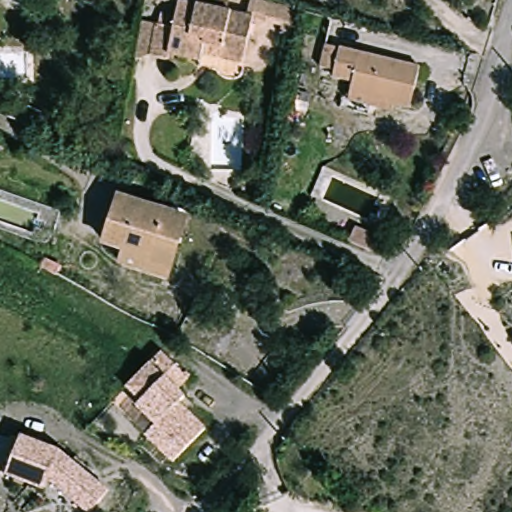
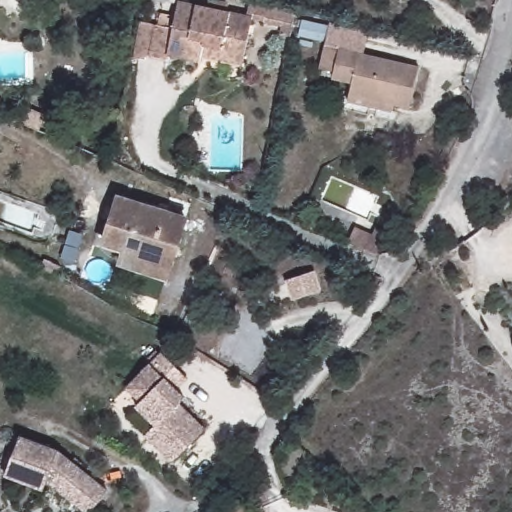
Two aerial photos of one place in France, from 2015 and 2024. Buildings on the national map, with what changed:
unchanged [(202,48),(200,57),(164,48),(163,52),(149,49),(148,48),(156,14),(157,14),(173,20),(179,0),(202,0),(255,14),(242,58),(202,48)]
unchanged [(270,4),(296,9),(291,27),(266,21),(270,4)]
unchanged [(352,108),(355,95),(358,86),(333,79),(335,70),(319,66),(332,21),(348,25),(343,45),(423,67),(411,110),(394,105),(390,118),(352,108)]
unchanged [(17,96),(48,108),(40,128),(8,115),(17,96)]
unchanged [(122,267),(128,247),(105,239),(118,196),(188,219),(172,269),(168,282),(122,267)]
unchanged [(402,238),(375,250),(354,240),(359,219),(404,234),(402,238)]
new [(311,269),(319,289),(294,301),(286,282),(311,269)]
unchanged [(139,359),(148,348),(152,351),(181,373),(171,386),(180,393),(175,399),(204,423),(175,459),(145,435),(154,424),(133,406),(137,401),(122,389),(131,378),(143,362),(139,359)]
unchanged [(103,512),(91,512),(56,484),(52,495),(26,487),(13,482),(26,442),(52,451),(65,455),(116,494),(103,512)]

